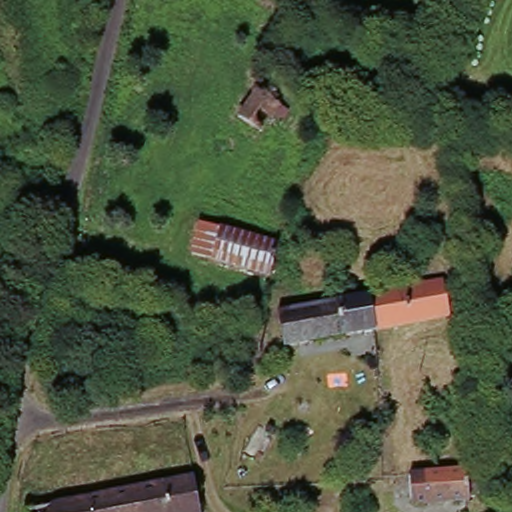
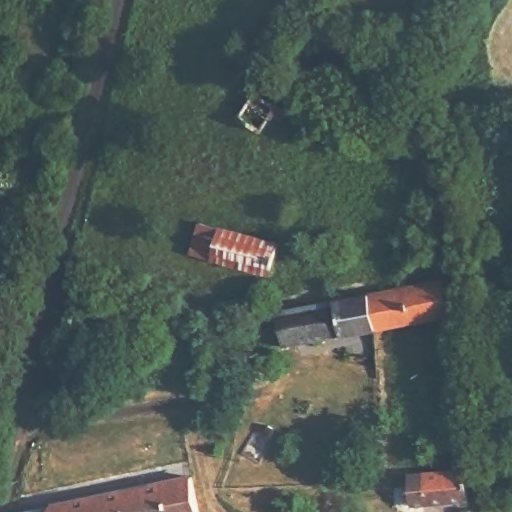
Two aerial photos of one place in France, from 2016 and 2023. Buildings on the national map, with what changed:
unchanged [(240,123),(260,93),(283,107),(265,137),(240,123)]
unchanged [(195,261),(205,229),(281,249),(274,282),(195,261)]
unchanged [(448,286),(455,322),(379,337),(372,299),(448,286)]
unchanged [(283,323),(282,316),(372,299),(379,337),(289,353),(283,323)]
unchanged [(482,500),(472,501),(473,509),(440,512),(417,512),(414,484),(469,478),(470,487),(481,487),(482,500)]
unchanged [(210,512),(68,512),(68,510),(204,486),(210,512)]
unchanged [(68,510),(68,512),(57,512),(68,510)]

